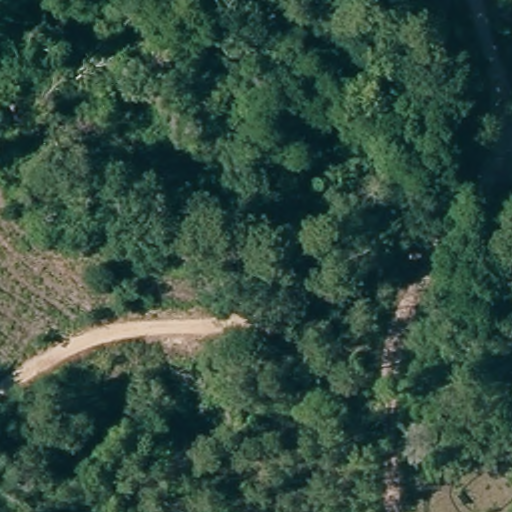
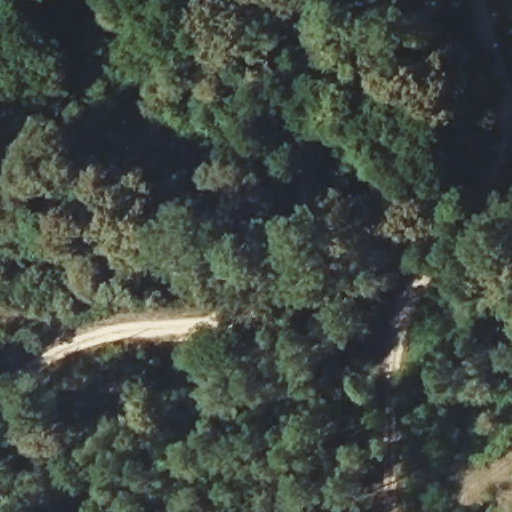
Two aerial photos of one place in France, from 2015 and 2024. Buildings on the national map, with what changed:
[]

